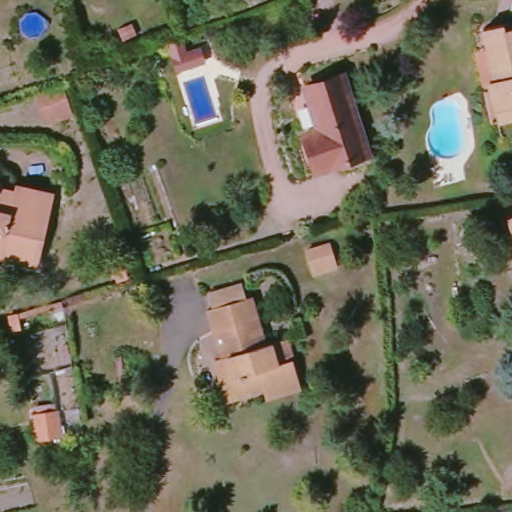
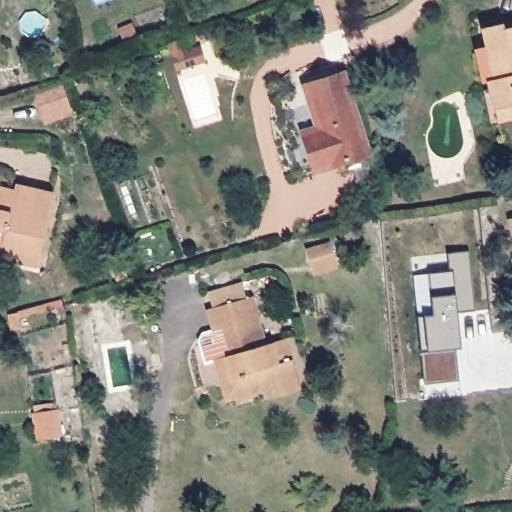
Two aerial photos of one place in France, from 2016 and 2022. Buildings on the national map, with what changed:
unchanged [(492,118),(484,86),(490,85),(488,76),(485,76),(477,45),(487,43),(482,23),(504,18),(505,24),(512,22),(512,113),(497,116),(492,118)]
unchanged [(172,54),(200,46),(205,60),(177,69),(172,54)]
unchanged [(320,132),(305,84),(344,72),(370,157),(317,173),(310,148),(307,137),(320,132)]
unchanged [(32,91),(65,79),(77,112),(42,124),(32,91)]
unchanged [(3,190),(20,194),(22,188),(59,198),(42,270),(4,263),(5,255),(0,254),(0,190),(3,190)]
unchanged [(312,265),(307,249),(330,240),(337,262),(325,266),(314,270),(312,265)]
new [(419,319),(433,316),(430,274),(452,271),(452,253),(470,251),(477,312),(459,313),(461,335),(462,349),(456,349),(460,381),(425,384),(422,352),(420,337),(419,319)]
unchanged [(265,403),(262,393),(244,398),(239,379),(222,384),(217,364),(232,359),(225,334),(217,336),(212,314),(218,312),(214,297),(245,289),(249,304),(252,303),(265,350),(286,344),(297,383),(300,393),(265,403)]
unchanged [(35,414),(58,411),(62,435),(38,439),(35,414)]

